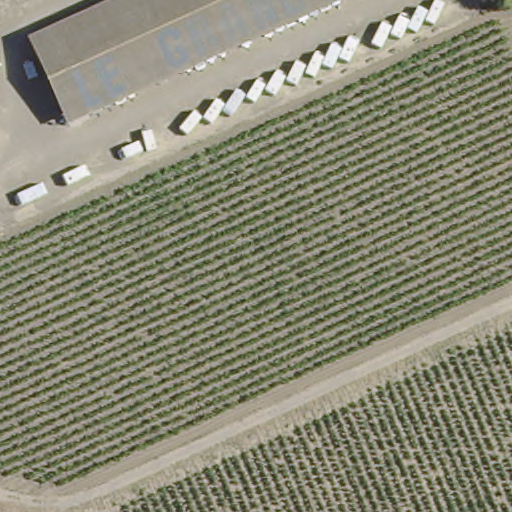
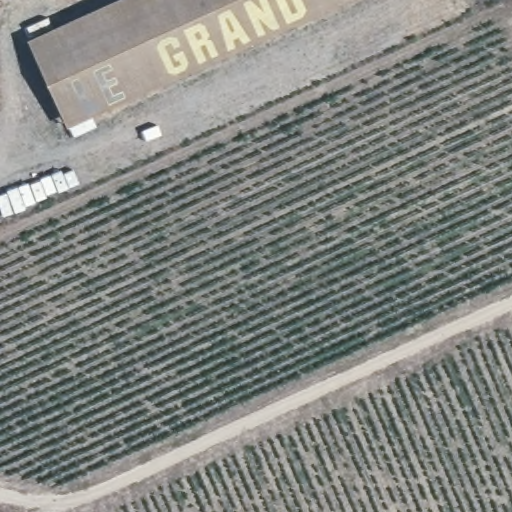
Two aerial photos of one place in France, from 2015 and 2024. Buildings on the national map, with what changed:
unchanged [(124,0),(360,0),(66,131),(26,44),(124,0)]

